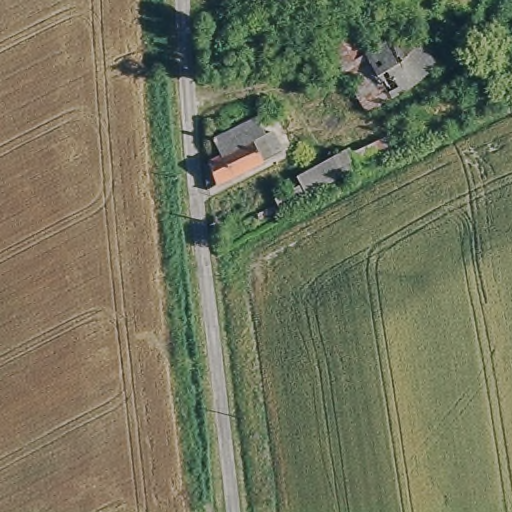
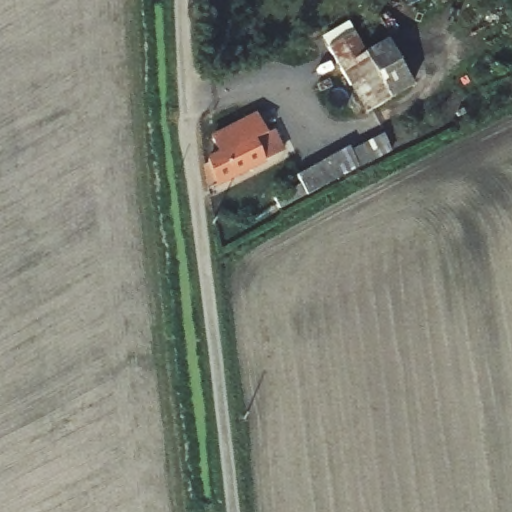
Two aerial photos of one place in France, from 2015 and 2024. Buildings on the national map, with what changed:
unchanged [(429,19),(455,62),(389,100),(363,59),(429,19)]
unchanged [(389,100),(362,116),(324,53),(350,37),(363,59),(389,100)]
unchanged [(224,165),(213,147),(257,124),(268,143),(276,139),(283,156),(207,194),(205,174),(224,165)]
unchanged [(277,204),(274,194),(301,185),(300,176),(354,155),(356,159),(387,147),(392,161),(277,204)]

